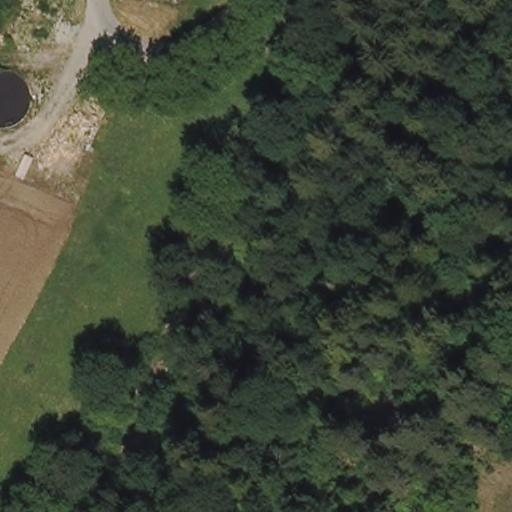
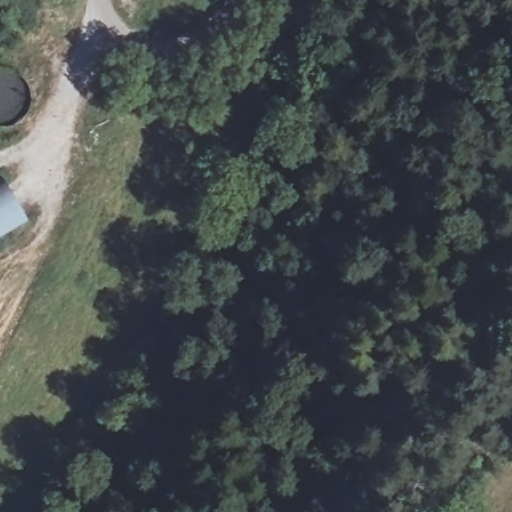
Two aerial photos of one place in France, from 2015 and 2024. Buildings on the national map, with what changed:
new [(0,183),(8,179),(27,214),(0,229),(0,183)]

